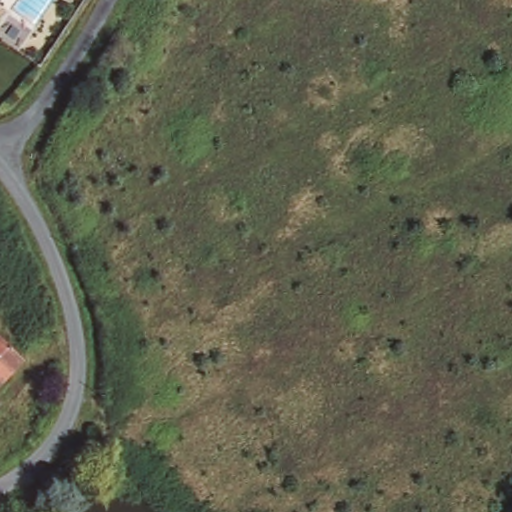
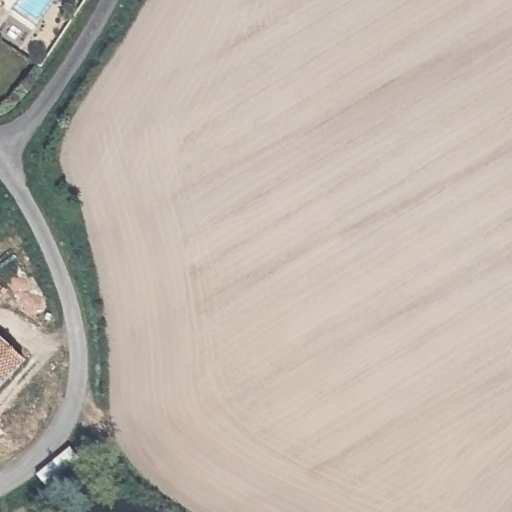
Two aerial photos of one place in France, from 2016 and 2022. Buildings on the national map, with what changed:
unchanged [(0,340),(22,358),(0,385),(0,339),(0,340)]

